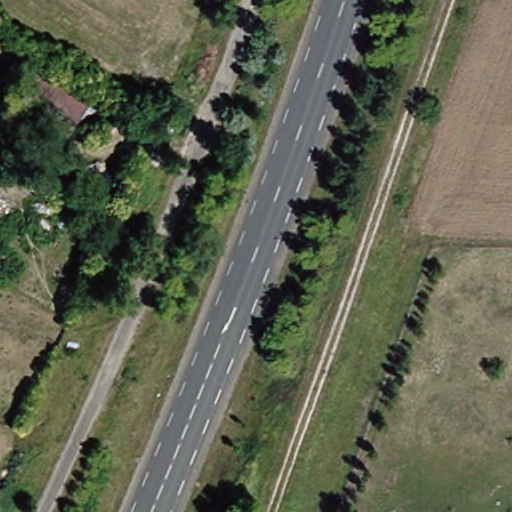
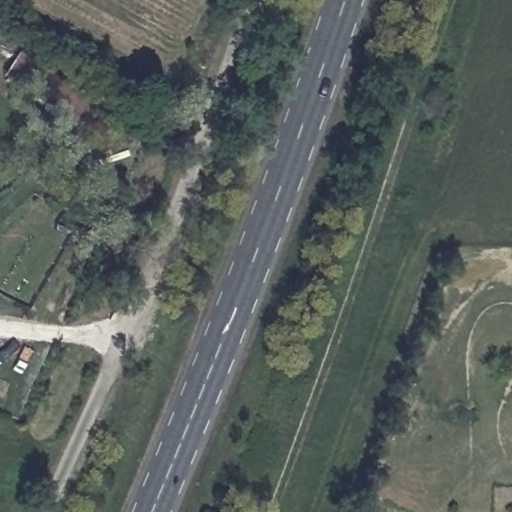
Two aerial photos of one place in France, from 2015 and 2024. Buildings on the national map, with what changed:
unchanged [(73,124),(4,81),(22,50),(91,95),(73,124)]

